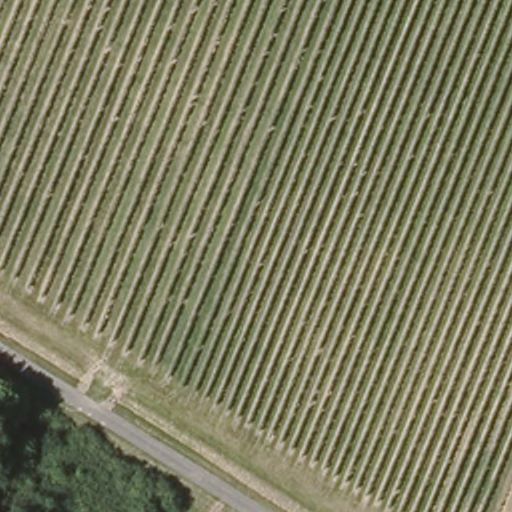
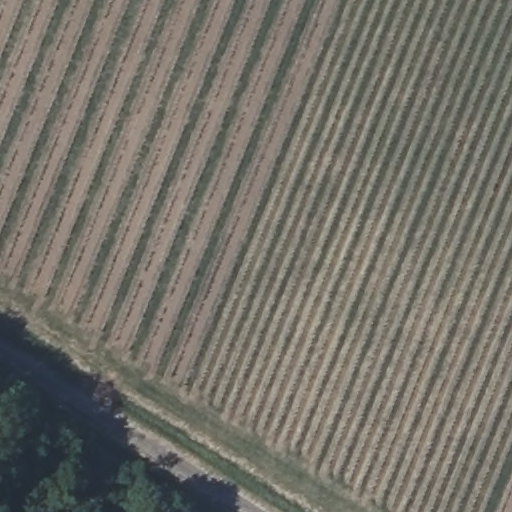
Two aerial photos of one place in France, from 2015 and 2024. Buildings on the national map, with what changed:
[]

